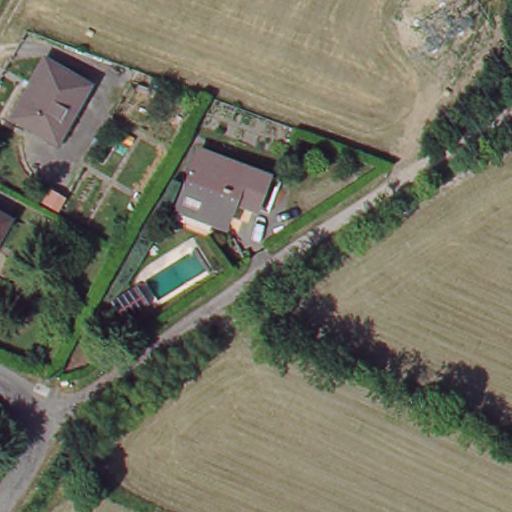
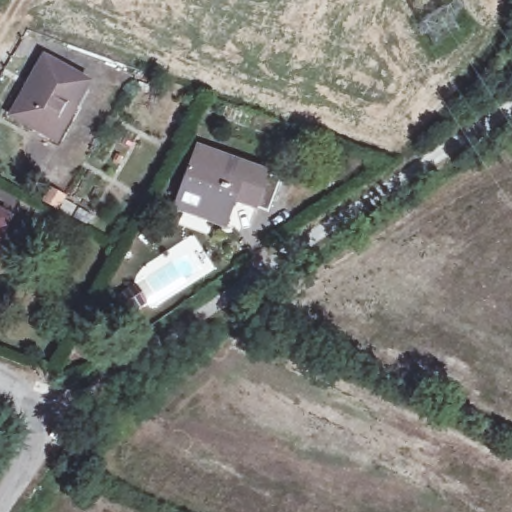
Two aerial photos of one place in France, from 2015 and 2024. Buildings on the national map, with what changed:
unchanged [(498,74),(505,56),(512,59),(512,79),(498,74)]
unchanged [(52,135),(16,115),(47,59),(90,82),(75,111),(60,139),(52,135)]
unchanged [(181,199),(197,154),(279,183),(267,215),(234,203),(225,228),(198,219),(177,211),(181,199)]
unchanged [(0,210),(12,216),(0,238),(0,210)]
unchanged [(129,314),(120,300),(137,290),(145,303),(129,314)]

